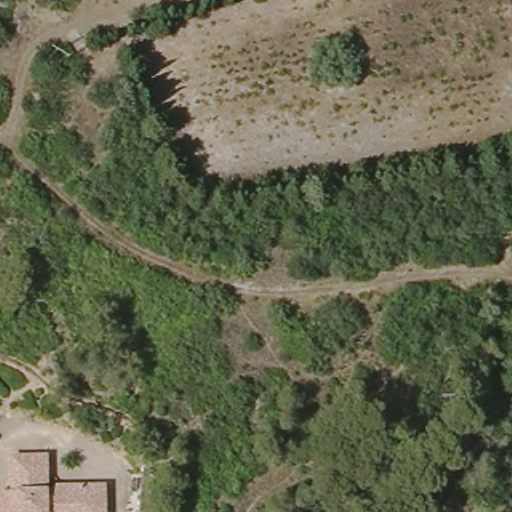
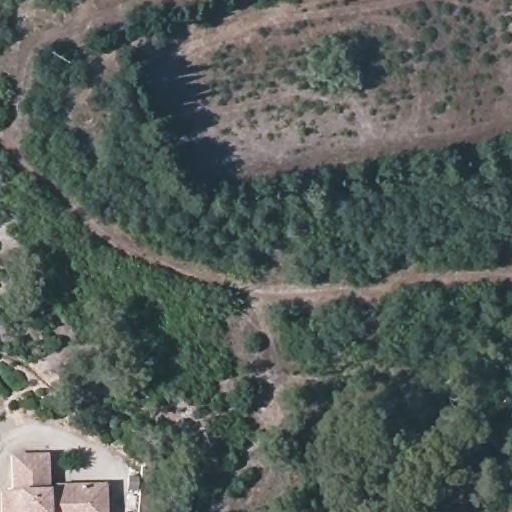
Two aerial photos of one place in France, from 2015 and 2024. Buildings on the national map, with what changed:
unchanged [(10,486),(21,486),(21,451),(56,450),(56,485),(64,485),(64,481),(114,480),(115,500),(115,512),(11,512),(10,486)]

